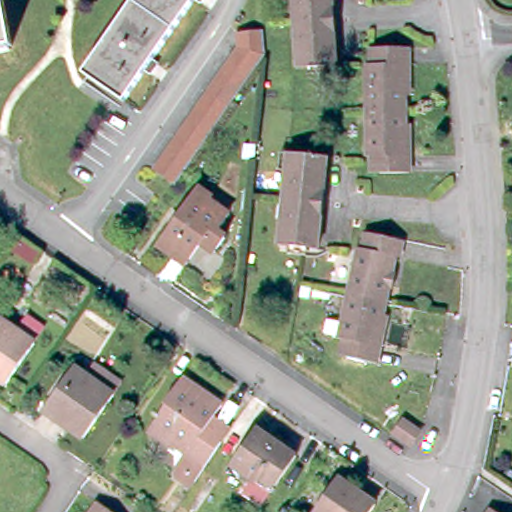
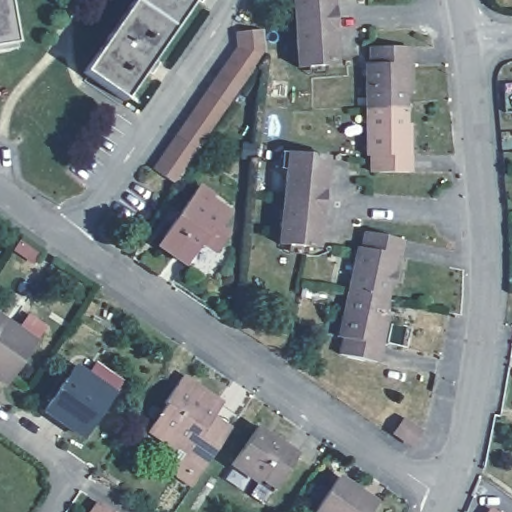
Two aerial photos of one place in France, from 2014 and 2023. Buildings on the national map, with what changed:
unchanged [(0,48),(0,0),(5,0),(13,46),(0,48)]
unchanged [(125,101),(84,73),(134,0),(195,0),(125,101)]
unchanged [(334,20),(315,22),(296,23),(295,0),(333,0),(334,20)]
unchanged [(310,76),(310,68),(300,69),(296,23),(315,22),(334,20),(337,66),(327,67),(328,75),(310,76)]
unchanged [(264,30),(266,52),(175,185),(150,168),(236,47),(235,33),(264,30)]
unchanged [(406,97),(406,111),(400,111),(375,111),(368,111),(367,65),(371,65),(371,49),(409,48),(410,64),(410,97),(406,97)]
unchanged [(400,111),(406,111),(406,124),(410,124),(410,156),(411,173),(373,173),(372,157),(369,157),(368,111),(375,111),(400,111)]
unchanged [(281,171),(282,154),(290,154),(328,158),(323,204),(286,200),(288,172),(281,171)]
unchanged [(211,201),(230,214),(217,231),(226,237),(214,253),(202,245),(187,265),(159,245),(200,188),(214,198),(211,201)]
unchanged [(290,255),(291,247),(281,246),(286,200),(323,204),(320,250),(310,249),(309,257),(290,255)]
unchanged [(355,244),(359,245),(362,229),(400,237),(396,253),(392,252),(383,295),(346,288),(355,244)]
unchanged [(378,340),(375,358),(337,351),(341,332),(337,332),(346,288),(383,295),(381,307),(385,308),(378,340)]
unchanged [(0,380),(0,317),(37,341),(6,385),(0,380)]
unchanged [(48,405),(75,366),(115,393),(84,438),(67,427),(45,411),(48,405)]
unchanged [(217,448),(200,473),(145,435),(171,396),(168,394),(176,382),(218,410),(211,421),(227,433),(217,448)]
unchanged [(415,445),(398,433),(407,419),(424,430),(415,445)]
unchanged [(231,465),(252,434),(257,427),(270,436),(285,445),(298,454),(294,461),(276,488),(272,494),(258,484),(231,465)]
unchanged [(320,512),(315,509),(339,472),(375,498),(366,512),(320,512)]
unchanged [(112,512),(93,512),(99,503),(112,512)]

